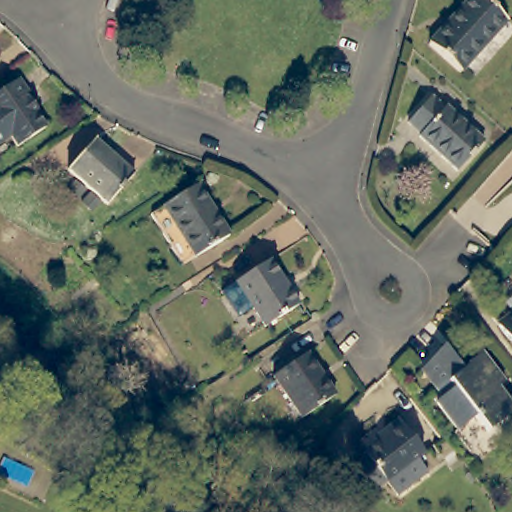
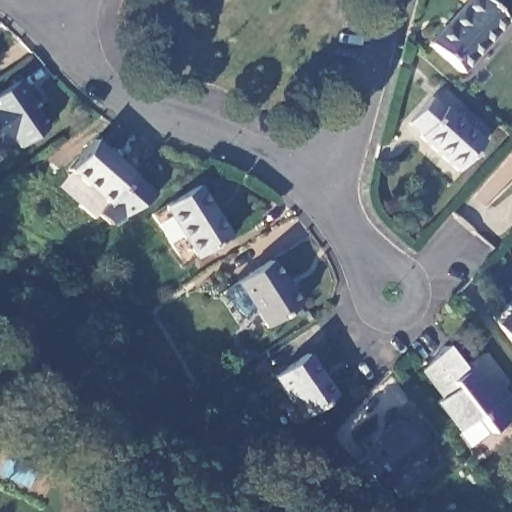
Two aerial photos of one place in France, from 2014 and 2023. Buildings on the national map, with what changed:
unchanged [(508,22),(460,72),(429,41),(468,0),(485,0),(508,22)]
unchanged [(20,77),(24,75),(32,88),(29,91),(31,94),(34,92),(43,103),(40,106),(51,123),(24,142),(0,158),(0,89),(19,76),(20,77)]
unchanged [(432,95),(444,107),(446,105),(484,142),(455,172),(417,135),(419,132),(407,120),(432,95)]
unchanged [(138,176),(111,206),(73,172),(99,141),(138,176)]
unchanged [(156,216),(168,208),(201,186),(234,235),(201,257),(188,265),(156,216)]
unchanged [(220,291),(236,280),(270,257),(301,302),(266,325),(253,307),(238,317),(220,291)]
unchanged [(491,318),(505,307),(502,303),(512,296),(512,347),(491,318)]
unchanged [(465,372),(471,366),(468,361),(481,352),(505,383),(496,390),(512,411),(512,415),(486,434),(474,417),(456,431),(433,401),(439,396),(420,370),(445,346),(465,372)]
unchanged [(335,399),(301,422),(273,379),(307,356),(335,399)]
unchanged [(402,415),(429,448),(421,455),(431,468),(401,492),(388,476),(379,484),(358,458),(368,450),(367,448),(390,429),(388,426),(402,415)]

